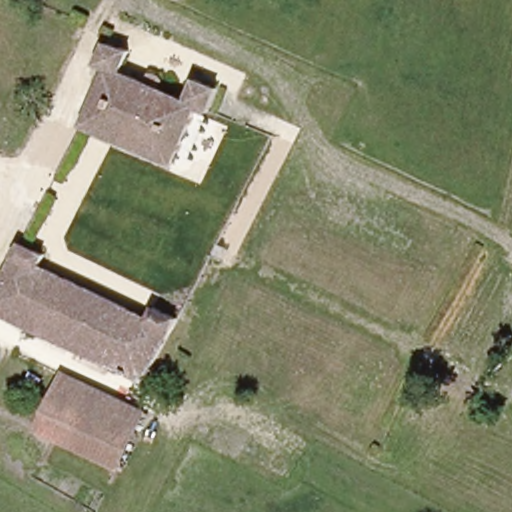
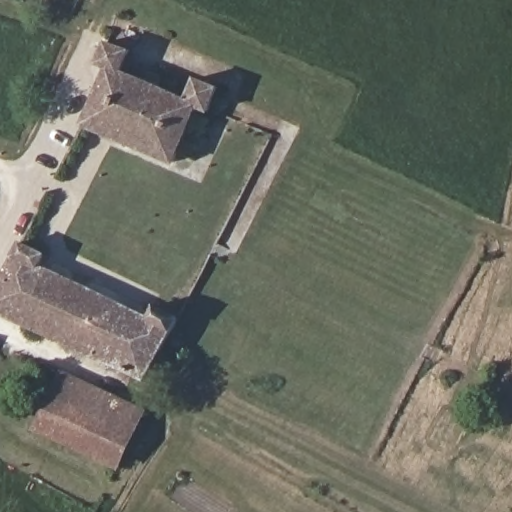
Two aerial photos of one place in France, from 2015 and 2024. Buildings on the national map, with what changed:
unchanged [(93,69),(101,48),(115,53),(129,59),(123,80),(139,88),(140,85),(145,76),(164,85),(160,94),(177,100),(178,101),(189,80),(212,89),(209,96),(205,110),(197,107),(177,162),(90,129),(84,127),(109,81),(93,69)]
unchanged [(147,381),(0,316),(0,293),(29,247),(41,253),(58,259),(53,270),(151,314),(159,299),(182,309),(163,349),(147,381)]
unchanged [(48,410),(63,379),(142,417),(115,469),(76,449),(39,429),(48,410)]

